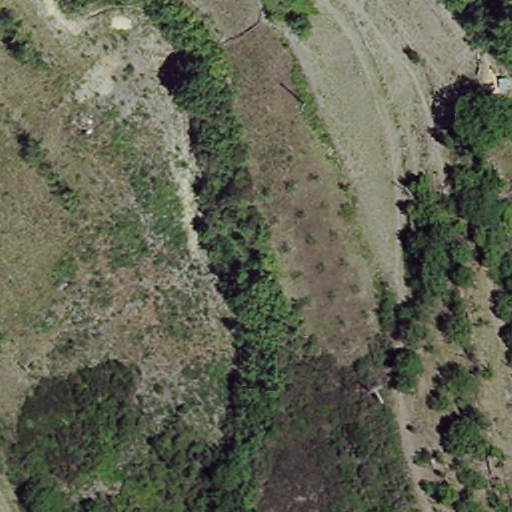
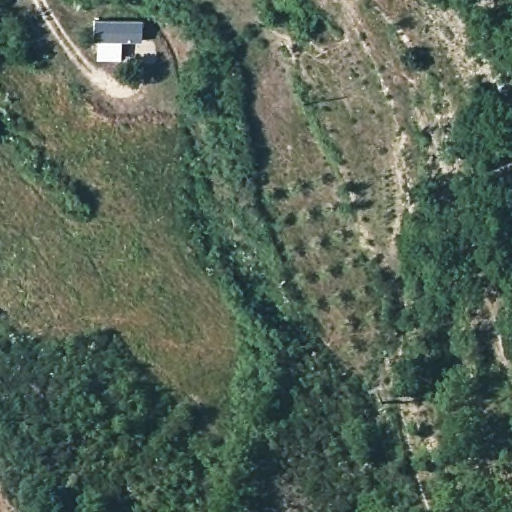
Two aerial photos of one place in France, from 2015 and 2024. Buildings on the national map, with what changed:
new [(142,23),(141,43),(93,42),(94,21),(142,23)]

